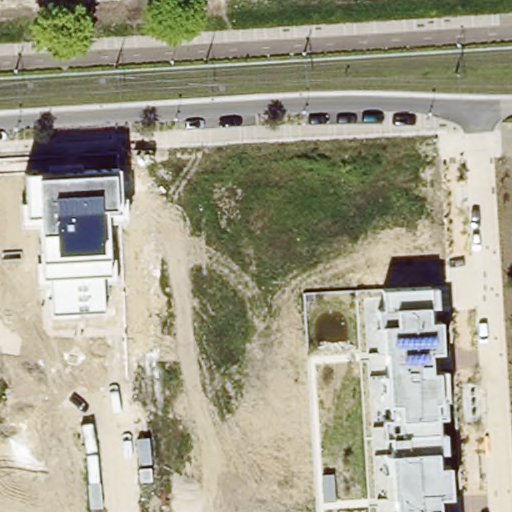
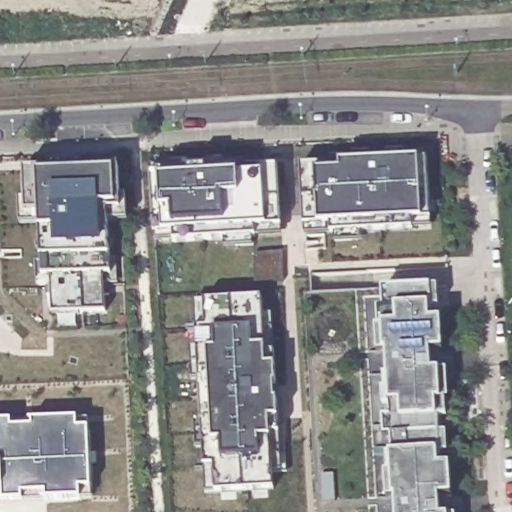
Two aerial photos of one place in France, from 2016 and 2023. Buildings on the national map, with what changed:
new [(429,216),(420,217),(410,218),(359,231),(331,232),(305,232),(304,223),(301,166),(341,163),(419,159),(429,159),(429,216)]
new [(255,235),(172,239),(156,240),(150,166),(173,166),(226,162),(226,170),(240,168),(275,167),(280,227),(281,234),(255,235)]
unchanged [(20,202),(25,201),(25,174),(119,169),(122,197),(128,197),(129,219),(108,221),(110,253),(110,269),(102,270),(105,310),(53,314),(51,277),(43,277),(42,259),(41,231),(40,221),(21,225),(20,202)]
unchanged [(385,439),(383,417),(388,416),(384,349),(377,349),(375,325),(378,325),(377,310),(384,309),(383,289),(438,285),(439,308),(431,308),(432,320),(441,319),(443,352),(433,353),(434,371),(448,370),(450,416),(440,418),(441,430),(446,430),(448,453),(440,454),(441,466),(449,465),(452,497),(441,498),(442,512),(394,512),(389,439),(385,439)]
new [(194,416),(202,415),(199,377),(191,378),(190,347),(195,346),(195,328),(193,301),(204,301),(261,298),(262,315),(270,315),(271,353),(274,353),(273,367),(275,367),(276,385),(274,385),(275,401),(277,401),(281,400),(285,472),(271,472),(273,488),(214,492),(205,493),(203,465),(202,447),(196,448),(194,416)]

